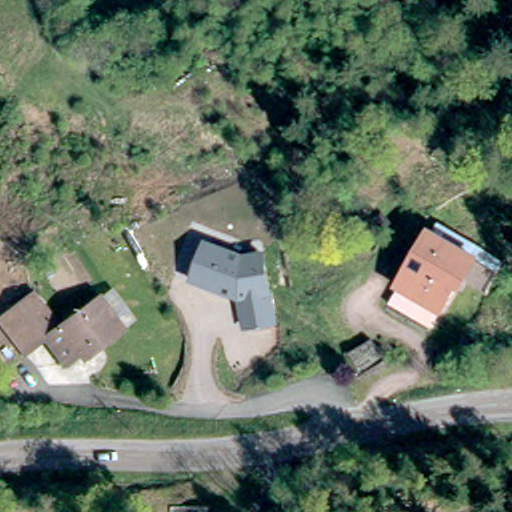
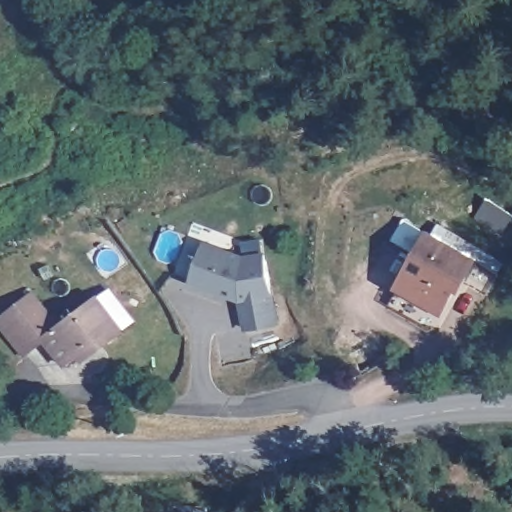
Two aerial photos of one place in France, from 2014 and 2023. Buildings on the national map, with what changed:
unchanged [(416,261),(410,257),(421,232),(495,269),(483,294),(460,281),(432,330),(416,322),(391,310),(400,292),(416,261)]
unchanged [(190,282),(206,239),(244,255),(265,252),(274,297),(278,326),(243,332),(237,302),(190,282)]
unchanged [(94,335),(63,361),(42,336),(22,352),(0,325),(0,309),(1,308),(30,284),(32,282),(45,299),(62,321),(97,293),(112,282),(138,315),(126,325),(102,343),(94,335)]
unchanged [(366,336),(379,357),(358,368),(346,347),(366,336)]

